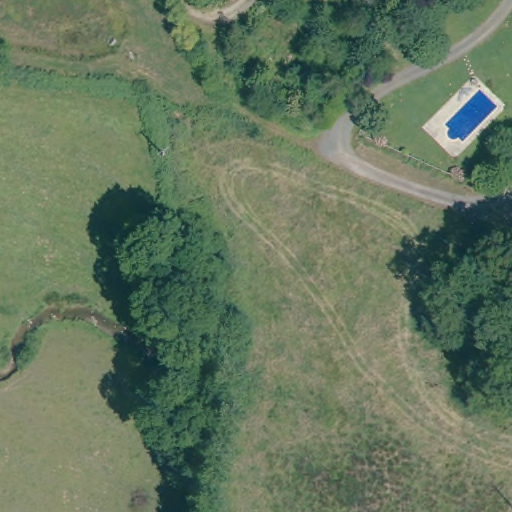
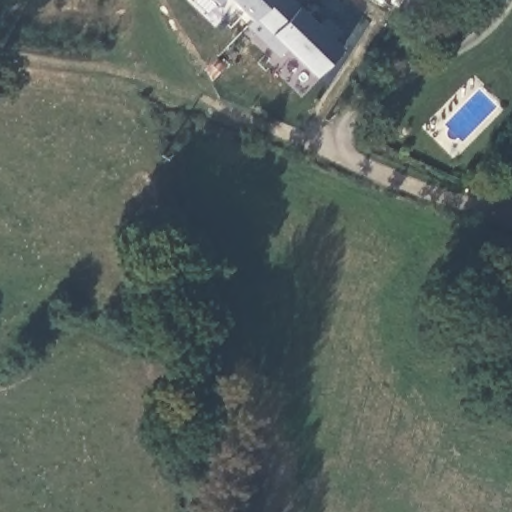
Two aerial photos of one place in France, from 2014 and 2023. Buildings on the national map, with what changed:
new [(255,18),(273,0),(291,0),(298,7),(317,24),(325,19),(336,31),(330,38),(340,47),(313,73),(287,49),(279,56),(248,26),(255,18)]

